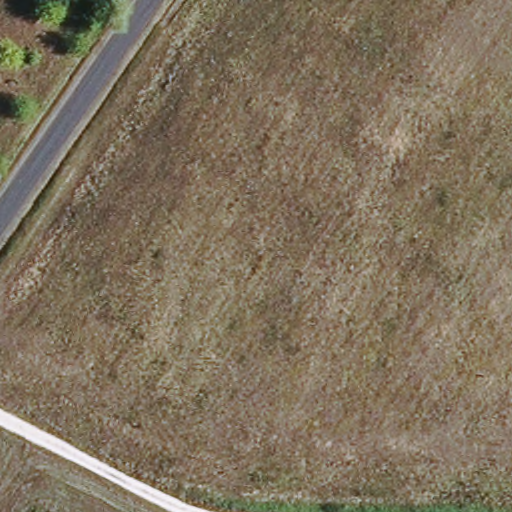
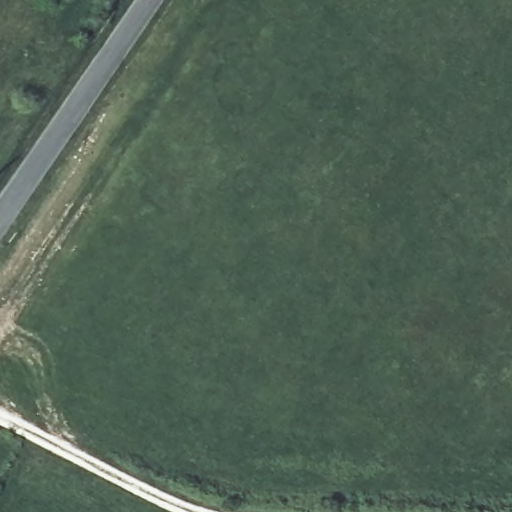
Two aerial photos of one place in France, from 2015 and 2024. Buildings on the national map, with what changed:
[]

